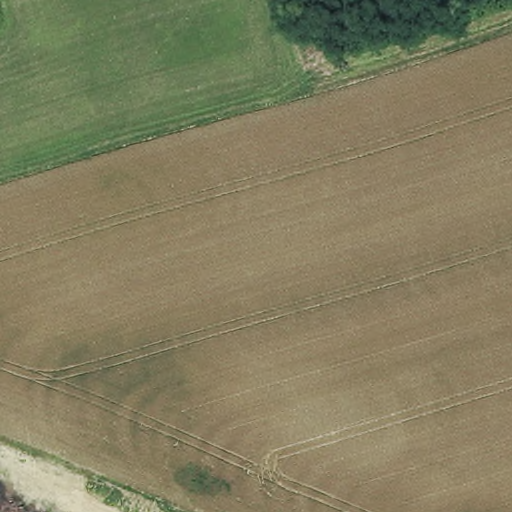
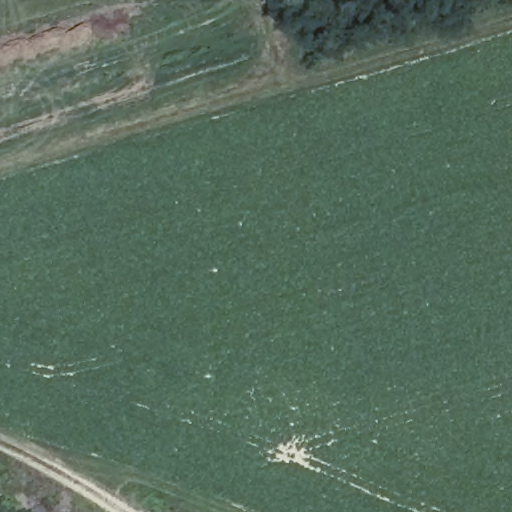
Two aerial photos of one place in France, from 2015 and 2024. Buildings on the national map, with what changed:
[]

